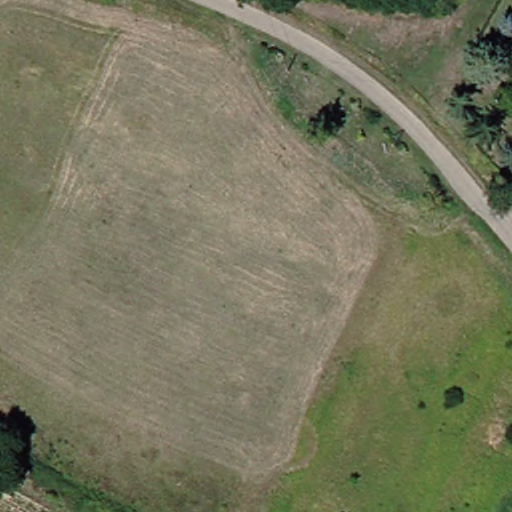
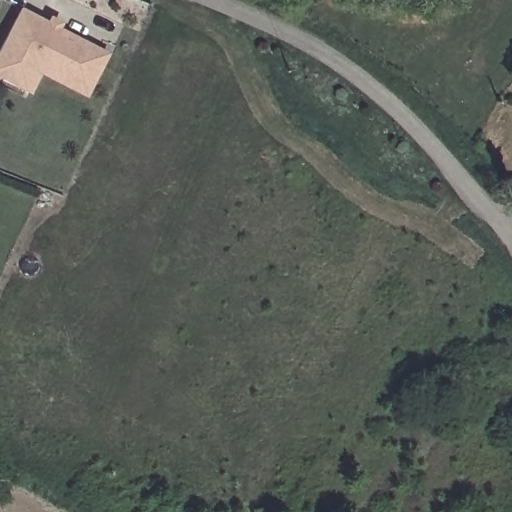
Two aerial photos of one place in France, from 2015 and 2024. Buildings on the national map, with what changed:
new [(19,7),(46,21),(48,16),(62,23),(60,28),(109,54),(86,99),(38,76),(29,95),(0,81),(0,44),(19,7)]

